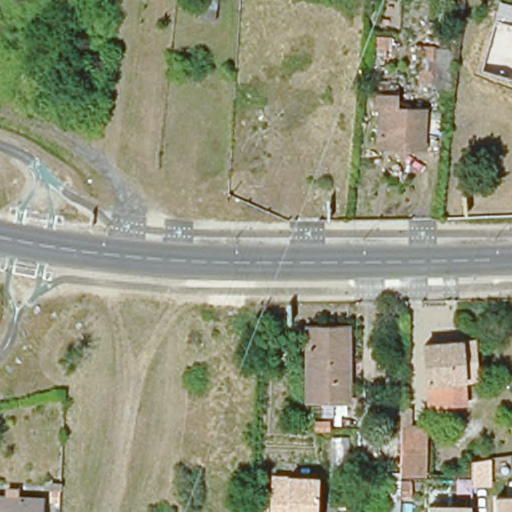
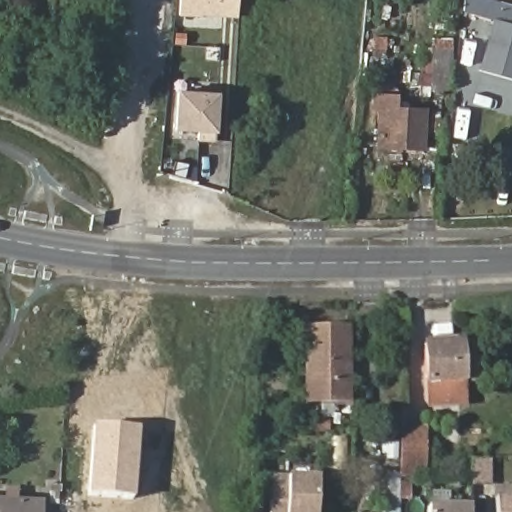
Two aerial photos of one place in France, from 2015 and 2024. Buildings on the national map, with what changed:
new [(201,16),(201,18),(179,16),(180,0),(238,0),(237,18),(201,16)]
unchanged [(500,2),(512,5),(512,80),(481,71),(500,2)]
unchanged [(425,48),(444,49),(441,89),(421,89),(425,48)]
new [(184,94),(224,96),(221,141),(204,140),(205,132),(182,131),(184,94)]
unchanged [(403,96),(402,108),(431,109),(427,148),(377,146),(378,112),(372,112),(372,95),(403,96)]
unchanged [(306,400),(305,334),(343,333),(344,400),(306,400)]
unchanged [(465,395),(431,398),(426,347),(460,344),(465,395)]
new [(133,500),(87,496),(92,426),(137,429),(133,500)]
unchanged [(420,426),(420,474),(408,474),(408,512),(396,512),(397,428),(420,426)]
unchanged [(272,475),(288,476),(317,476),(317,512),(271,512),(272,475)]
unchanged [(46,496),(45,512),(0,512),(0,495),(46,496)]
unchanged [(496,496),(512,496),(512,512),(497,512),(496,496)]
unchanged [(469,512),(430,512),(431,505),(469,506),(469,512)]

